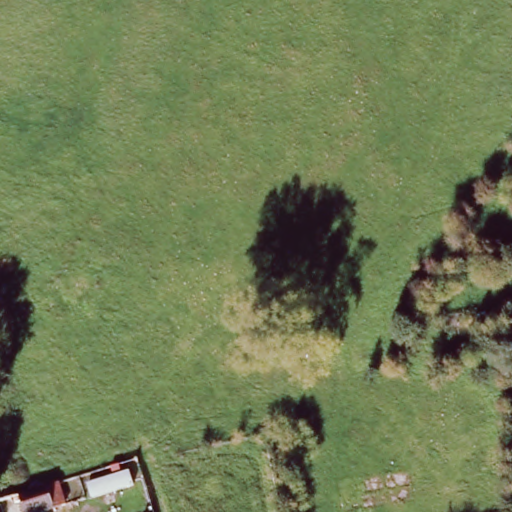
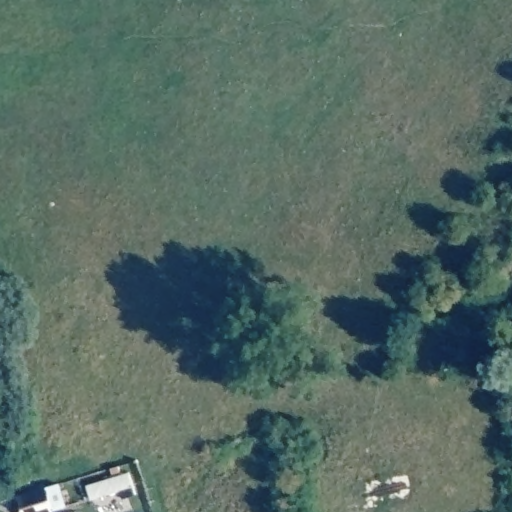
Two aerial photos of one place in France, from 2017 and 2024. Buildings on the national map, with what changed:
unchanged [(19,497),(61,484),(68,506),(48,512),(16,512),(12,499),(19,497)]
unchanged [(5,501),(8,509),(0,511),(0,502),(5,501)]

